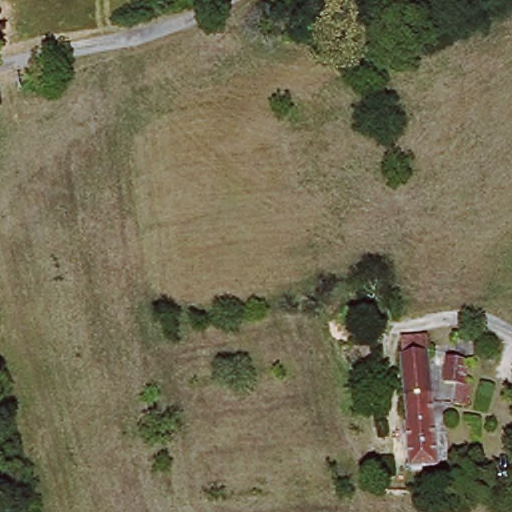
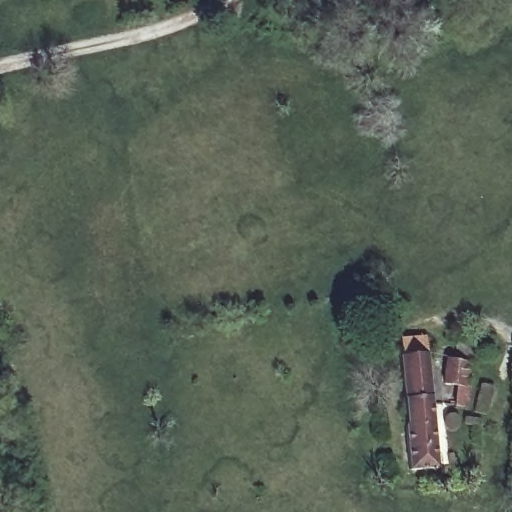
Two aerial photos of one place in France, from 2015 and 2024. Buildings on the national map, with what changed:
unchanged [(364,322),(366,332),(356,335),(354,324),(364,322)]
unchanged [(405,345),(411,343),(409,330),(434,330),(442,463),(413,465),(410,420),(413,419),(405,345)]
unchanged [(468,407),(454,405),(456,387),(445,383),(449,353),(456,352),(459,335),(487,342),(483,365),(467,364),(465,384),(470,383),(468,407)]

